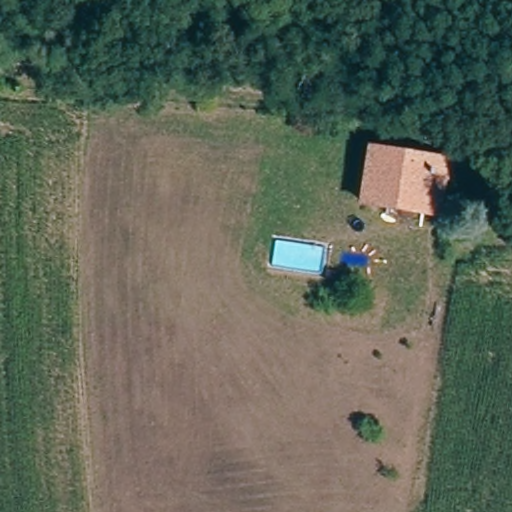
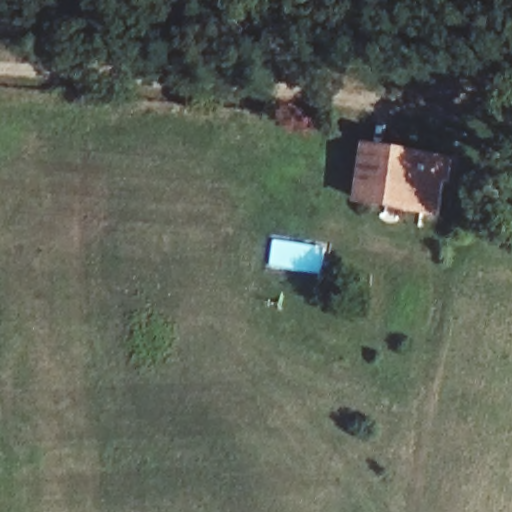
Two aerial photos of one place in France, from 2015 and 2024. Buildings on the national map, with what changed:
unchanged [(359,203),(366,153),(447,162),(447,184),(438,184),(434,210),(359,203)]

